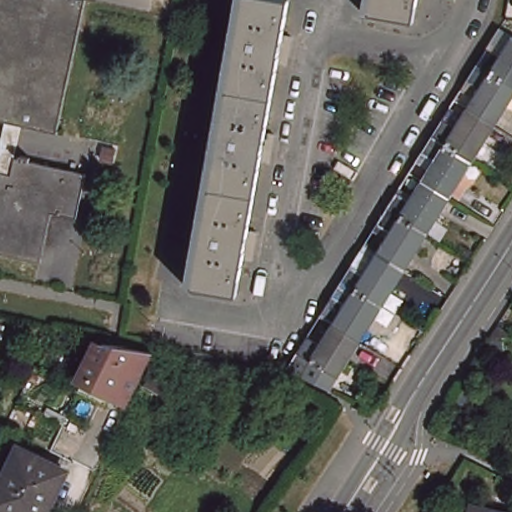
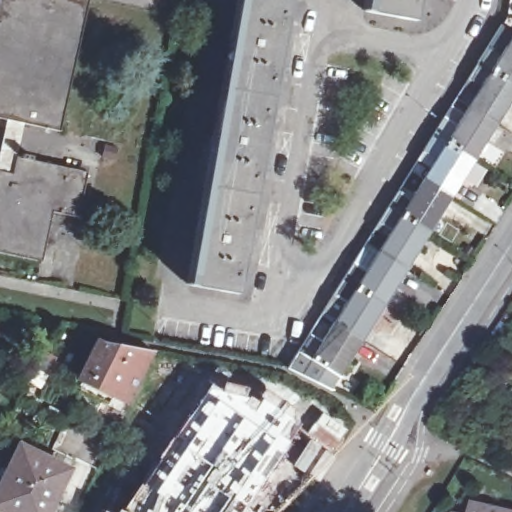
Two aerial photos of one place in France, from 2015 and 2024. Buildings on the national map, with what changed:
unchanged [(53,127),(0,115),(0,0),(81,0),(53,127)]
unchanged [(184,283),(236,0),(288,0),(234,292),(184,283)]
unchanged [(419,16),(369,7),(370,0),(422,0),(419,16)]
unchanged [(501,57),(512,41),(512,85),(479,66),(489,50),(501,57)]
unchanged [(481,90),(469,83),(479,66),(512,85),(512,99),(496,126),(469,109),(481,90)]
unchanged [(457,129),(469,109),(496,126),(474,162),(435,138),(445,122),(457,129)]
unchanged [(452,198),(426,181),(438,162),(425,153),(435,138),(474,162),(452,198)]
unchanged [(17,158),(85,174),(77,222),(51,216),(43,259),(0,250),(0,174),(13,177),(17,158)]
unchanged [(441,216),(429,233),(391,209),(401,193),(414,201),(426,181),(452,198),(441,216)]
unchanged [(407,271),(381,254),(393,235),(380,226),(391,209),(429,233),(407,271)]
unchanged [(384,307),(346,282),(356,266),(368,275),(381,254),(407,271),(384,307)]
unchanged [(362,343),(335,326),(348,306),(336,298),(346,282),(384,307),(362,343)]
unchanged [(323,347),(335,326),(362,343),(340,378),(301,354),(311,339),(323,347)]
unchanged [(75,386),(82,372),(100,337),(105,338),(151,348),(128,395),(109,386),(103,400),(75,386)]
new [(208,383),(219,388),(221,382),(257,399),(259,396),(291,418),(279,432),(287,438),(240,512),(115,512),(203,390),(208,383)]
new [(309,437),(306,434),(322,412),(350,429),(332,454),(324,448),(306,474),(291,465),(309,437)]
unchanged [(21,450),(68,473),(50,512),(2,512),(0,511),(0,486),(2,487),(21,450)]
unchanged [(504,512),(451,512),(455,499),(504,511),(504,512)]
new [(108,512),(100,512),(101,509),(108,512)]

